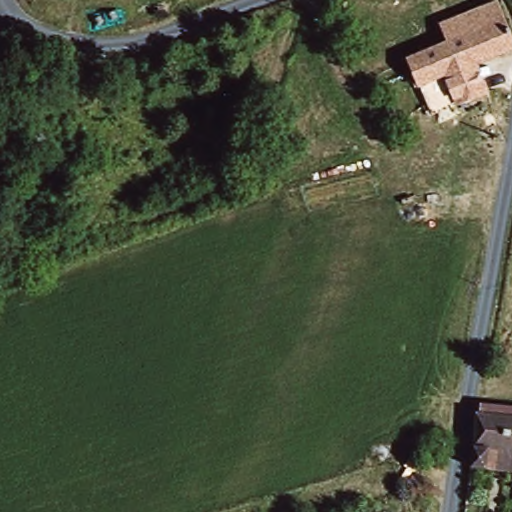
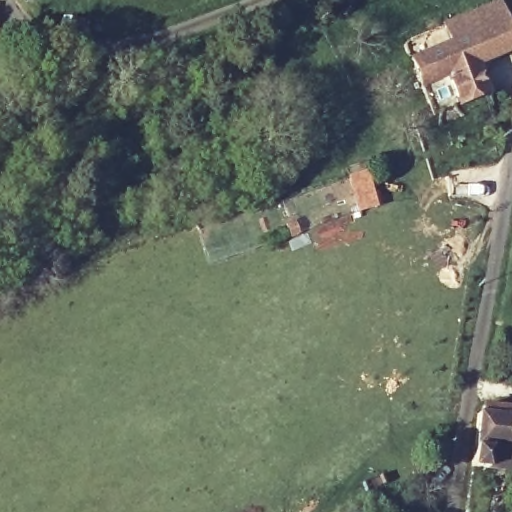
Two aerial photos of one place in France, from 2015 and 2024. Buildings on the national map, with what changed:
unchanged [(430,119),(405,54),(448,37),(441,19),(472,9),(480,27),(503,19),(512,41),(512,47),(470,61),(485,99),(430,119)]
unchanged [(470,461),(476,413),(512,417),(512,467),(470,461)]

